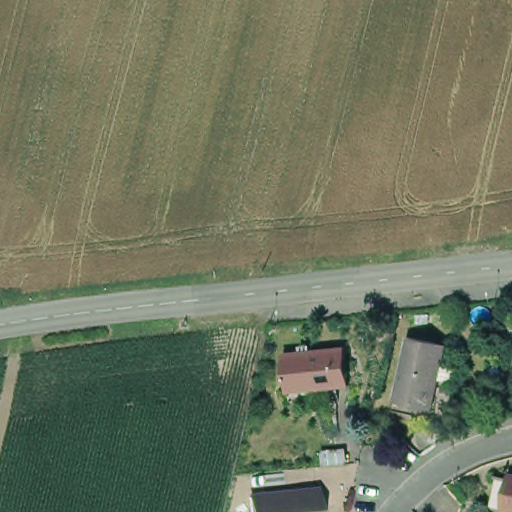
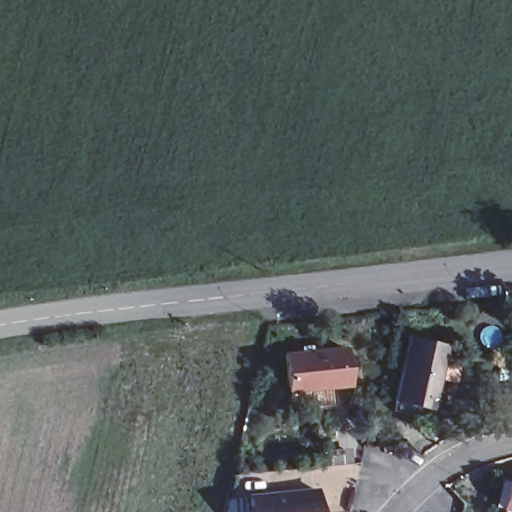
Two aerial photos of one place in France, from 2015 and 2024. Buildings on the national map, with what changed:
unchanged [(405,419),(404,413),(385,408),(386,402),(401,338),(440,347),(425,411),(422,422),(405,419)]
unchanged [(343,386),(281,392),(278,356),(295,354),(295,348),(307,347),(307,353),(340,350),(343,386)]
unchanged [(505,480),(512,481),(512,512),(497,512),(505,480)]
unchanged [(313,492),(315,512),(248,512),(247,499),(313,492)]

